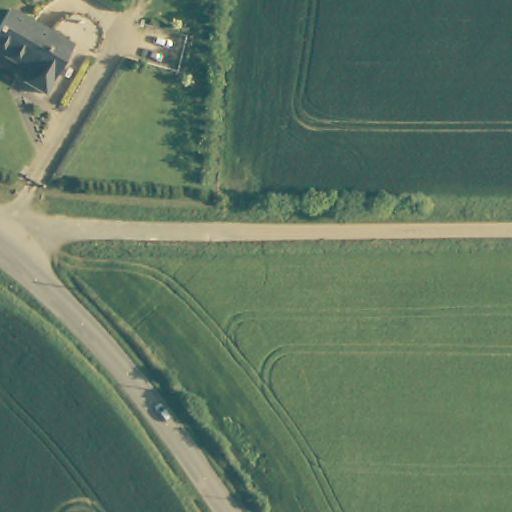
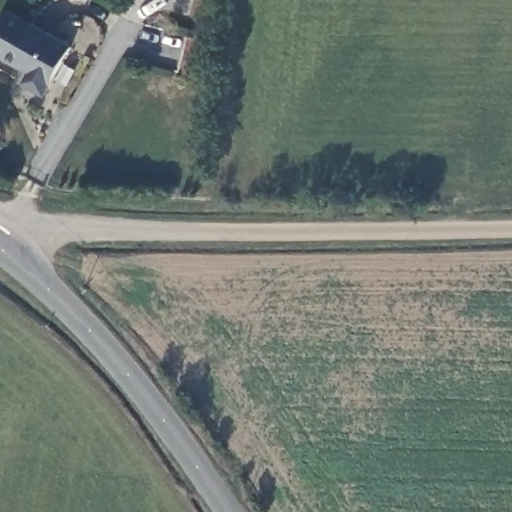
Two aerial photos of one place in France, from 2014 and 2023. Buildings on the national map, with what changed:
unchanged [(25,84),(33,71),(0,52),(0,30),(11,10),(75,47),(48,97),(25,84)]

